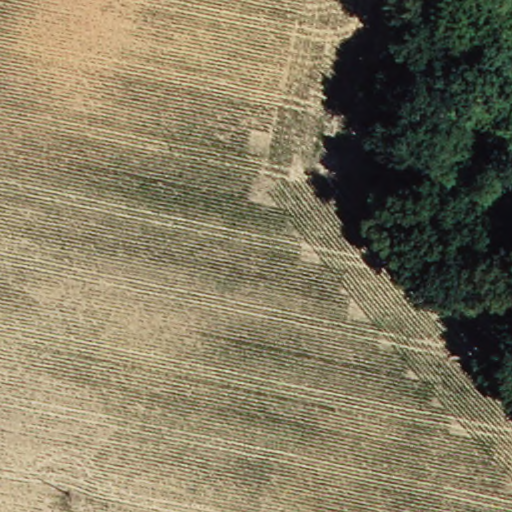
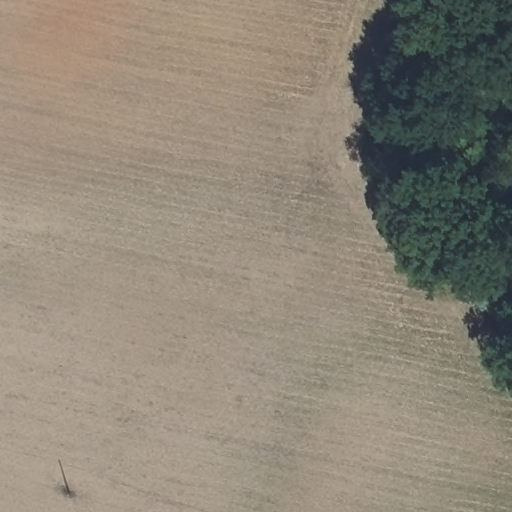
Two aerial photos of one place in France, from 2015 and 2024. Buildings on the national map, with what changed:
[]

